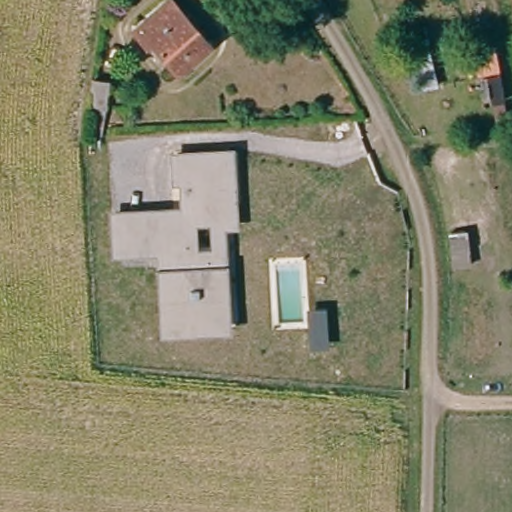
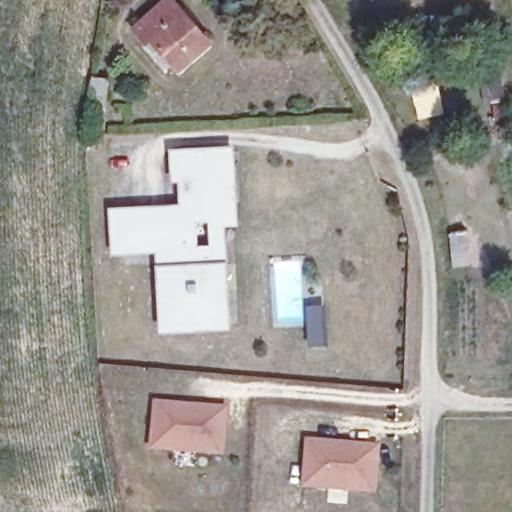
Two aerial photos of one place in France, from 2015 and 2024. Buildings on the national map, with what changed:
unchanged [(184,77),(155,46),(150,51),(137,38),(174,3),(217,49),(184,77)]
unchanged [(498,48),(509,99),(492,102),(482,52),(498,48)]
new [(419,121),(407,67),(432,61),(445,114),(419,121)]
unchanged [(104,83),(122,84),(118,119),(101,118),(104,83)]
unchanged [(233,144),(239,224),(226,225),(232,327),(162,335),(157,253),(110,254),(107,208),(179,203),(177,183),(172,182),(170,151),(233,144)]
new [(472,234),(474,267),(458,268),(456,235),(472,234)]
new [(228,407),(224,456),(150,450),(153,401),(228,407)]
new [(381,445),(377,494),(302,488),(306,438),(381,445)]

